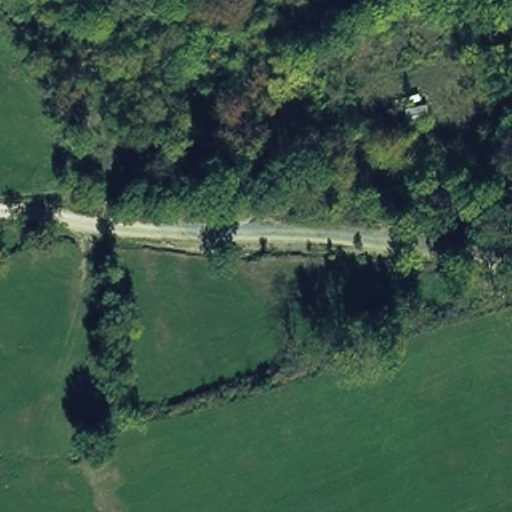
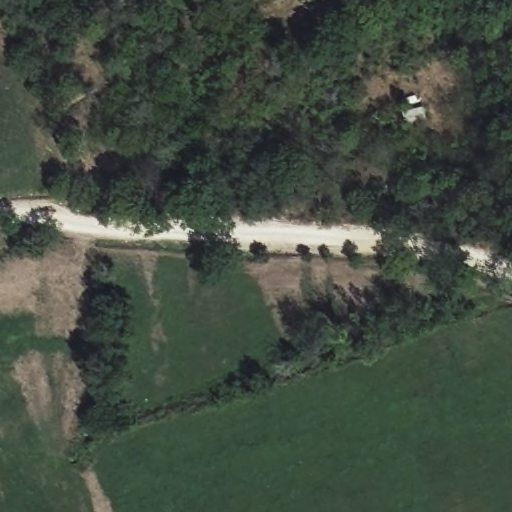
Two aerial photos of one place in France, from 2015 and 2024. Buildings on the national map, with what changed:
unchanged [(424,102),(427,121),(405,124),(401,105),(424,102)]

